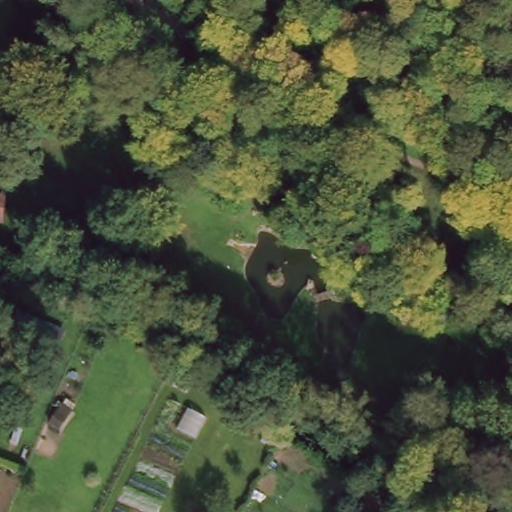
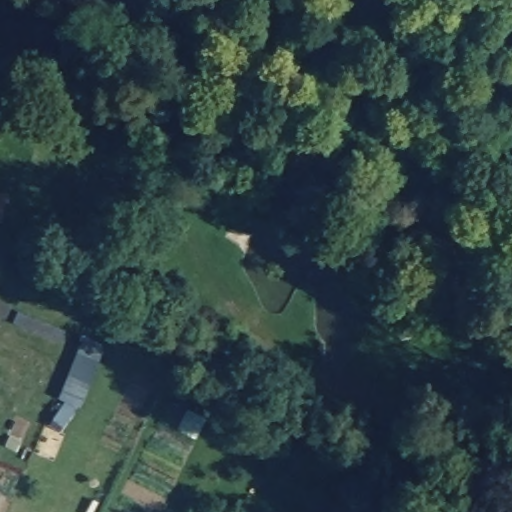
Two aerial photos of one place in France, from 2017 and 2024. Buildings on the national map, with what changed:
new [(55,396),(85,341),(106,352),(65,427),(52,421),(63,400),(55,396)]

